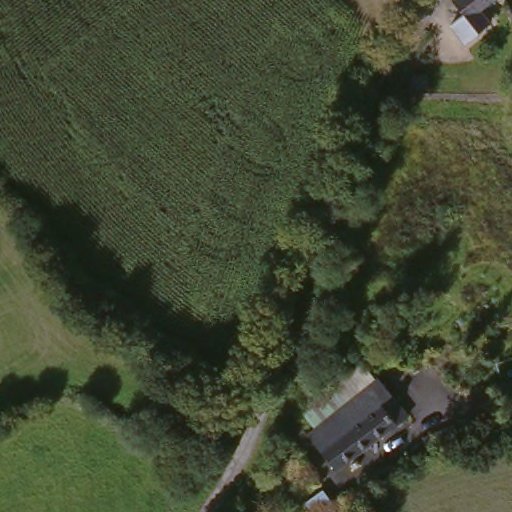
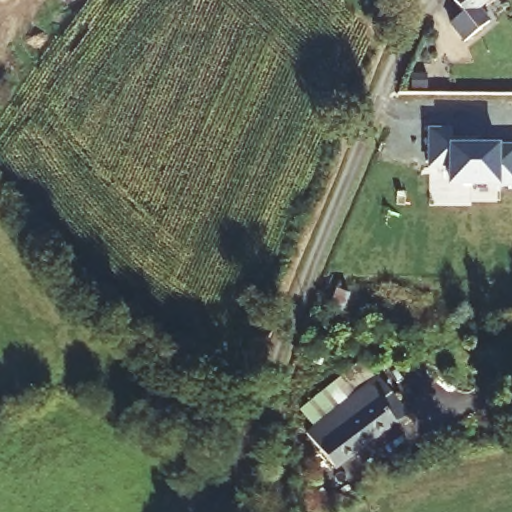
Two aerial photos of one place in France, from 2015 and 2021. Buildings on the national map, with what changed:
unchanged [(468,19),(452,0),(492,0),(468,19)]
unchanged [(409,53),(427,28),(447,42),(428,67),(409,53)]
unchanged [(441,72),(434,67),(438,62),(444,67),(441,72)]
new [(469,129),(468,145),(500,146),(512,145),(512,188),(501,187),(448,189),(448,170),(428,171),(428,129),(469,129)]
unchanged [(337,290),(350,296),(342,312),(329,307),(337,290)]
unchanged [(332,475),(302,439),(373,382),(403,421),(332,475)]
unchanged [(455,445),(424,457),(418,443),(449,431),(455,445)]
unchanged [(318,495),(328,509),(324,512),(304,512),(301,508),(318,495)]

